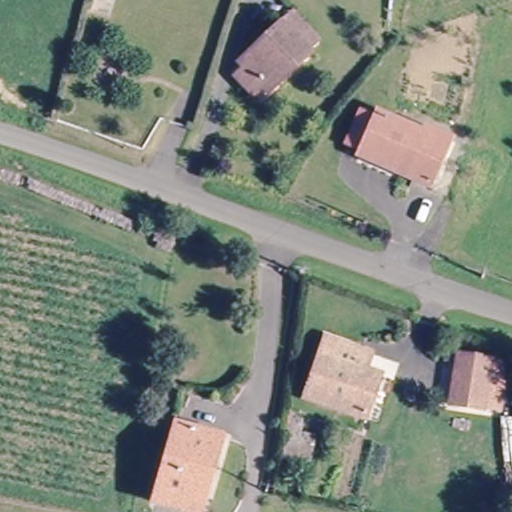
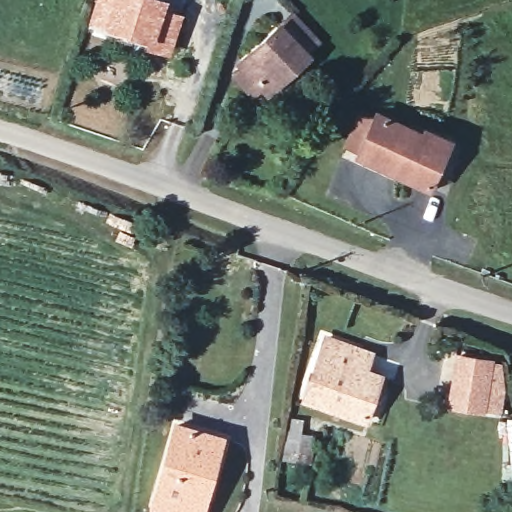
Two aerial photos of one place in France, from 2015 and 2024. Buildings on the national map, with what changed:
new [(169,0),(166,7),(184,12),(171,56),(143,48),(145,41),(87,26),(95,0),(169,0)]
unchanged [(236,72),(245,64),(242,62),(291,17),(315,44),(305,52),(308,57),(269,92),(260,81),(251,89),(236,72)]
unchanged [(448,145),(431,184),(362,156),(379,116),(448,145)]
unchanged [(357,351),(350,368),(376,380),(359,422),(299,396),(324,337),(357,351)]
unchanged [(485,362),(474,410),(445,403),(456,355),(485,362)]
unchanged [(149,502),(154,487),(176,425),(221,440),(200,502),(197,512),(177,512),(149,502)]

